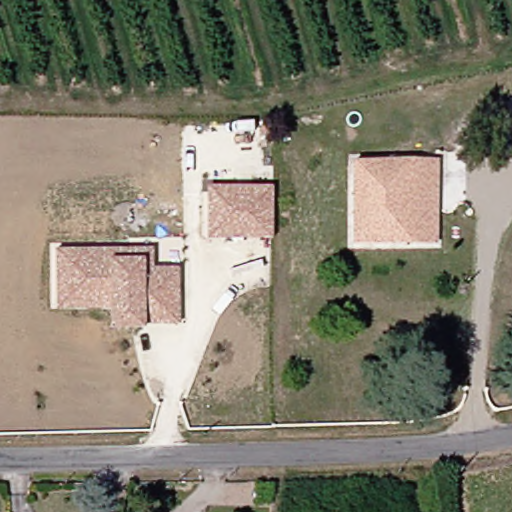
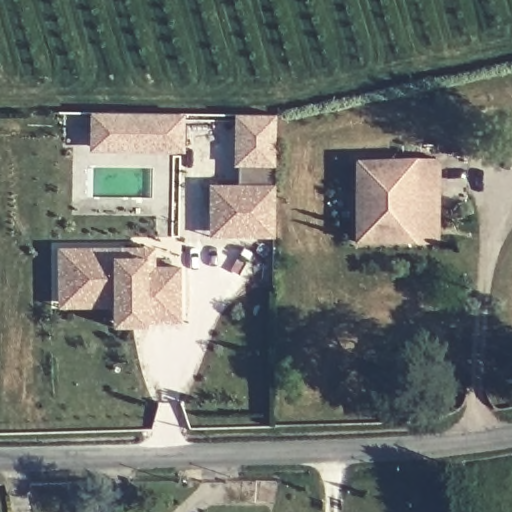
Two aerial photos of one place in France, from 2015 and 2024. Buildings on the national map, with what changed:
new [(183,153),(88,151),(89,112),(183,114),(183,153)]
new [(272,167),(273,182),(237,182),(237,165),(232,165),(232,114),(275,115),(272,167)]
unchanged [(417,240),(358,241),(358,159),(417,158),(431,158),(433,218),(433,240),(417,240)]
unchanged [(211,213),(211,182),(231,182),(273,181),(273,182),(273,183),(274,183),(274,184),(275,184),(275,234),(232,234),(212,234),(211,213)]
unchanged [(149,325),(116,326),(115,307),(61,308),(60,296),(59,249),(146,246),(155,245),(156,265),(181,264),(183,304),(183,320),(148,322),(149,325)]

